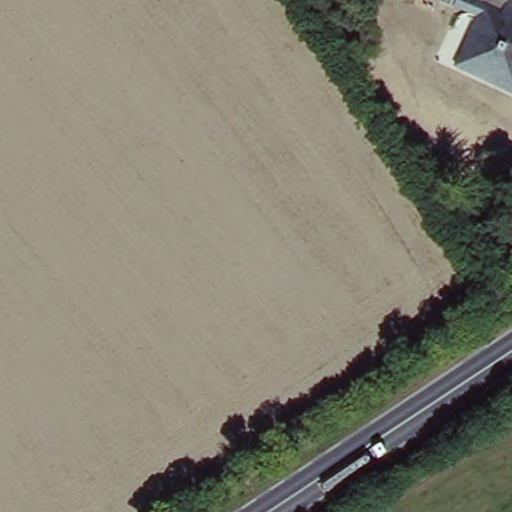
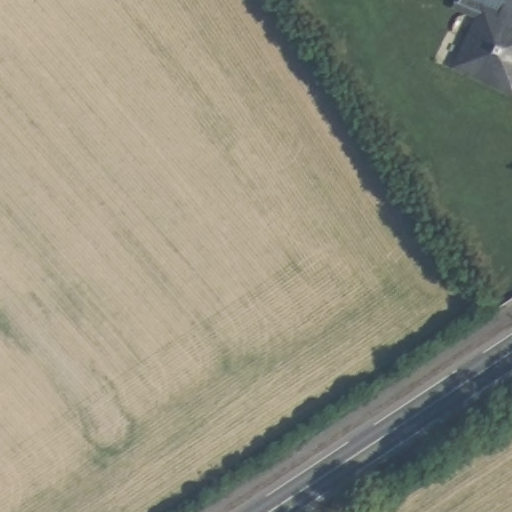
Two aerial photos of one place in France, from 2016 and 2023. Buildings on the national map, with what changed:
unchanged [(440,0),(463,0),(460,8),(440,0)]
unchanged [(461,4),(463,0),(512,0),(512,25),(500,19),(483,13),(461,4)]
unchanged [(512,96),(458,72),(483,13),(500,19),(512,25),(512,96)]

